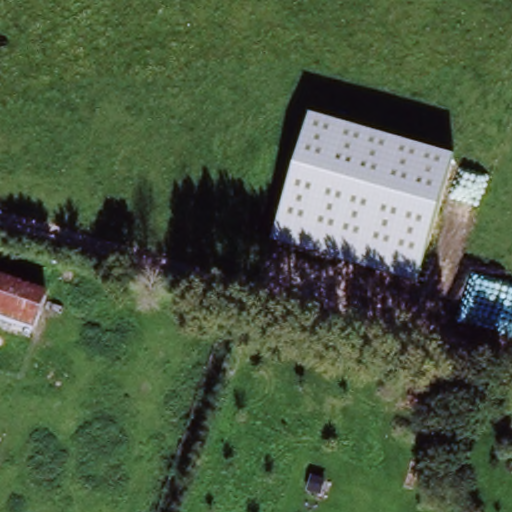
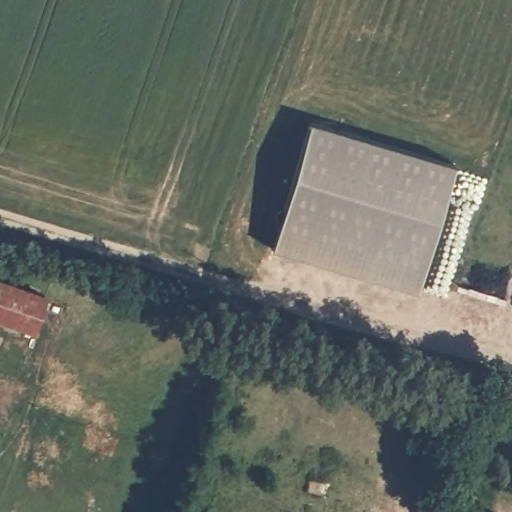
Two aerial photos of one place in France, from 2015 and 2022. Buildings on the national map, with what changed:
unchanged [(453,166),(417,292),(272,250),(310,125),(453,166)]
unchanged [(32,332),(0,321),(0,275),(47,290),(32,332)]

